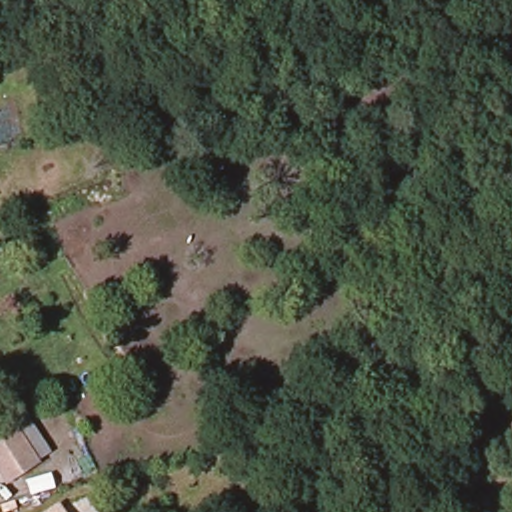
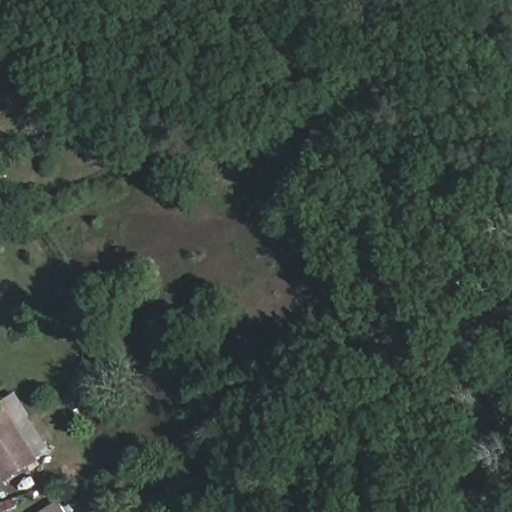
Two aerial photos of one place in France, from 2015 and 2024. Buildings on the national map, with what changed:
unchanged [(14,430),(20,440),(0,453),(0,408),(14,430)]
unchanged [(37,466),(7,485),(0,474),(0,453),(20,440),(14,430),(17,428),(27,422),(49,456),(38,462),(36,465),(37,466)]
unchanged [(47,512),(56,505),(61,512),(47,512)]

